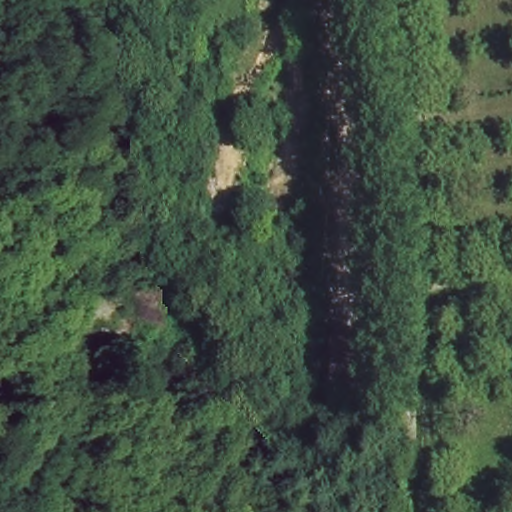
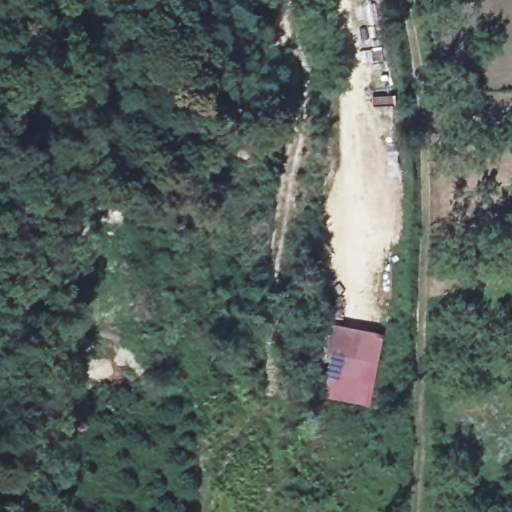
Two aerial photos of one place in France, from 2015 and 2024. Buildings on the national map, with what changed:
new [(379,335),(368,384),(326,375),(331,354),(325,354),(332,325),(379,335)]

